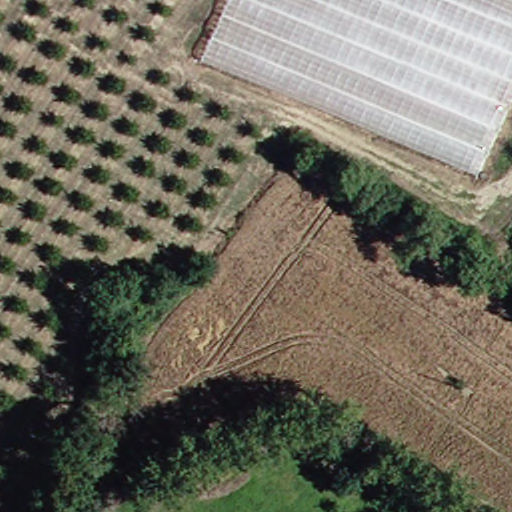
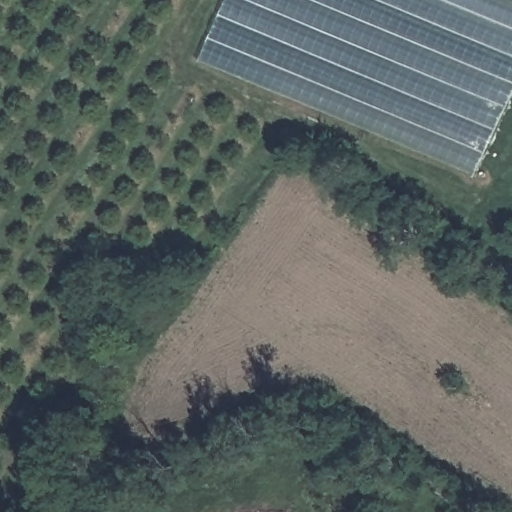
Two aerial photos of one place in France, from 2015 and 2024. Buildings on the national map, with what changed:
unchanged [(205,55),(231,0),(485,0),(512,11),(512,102),(481,171),(205,55)]

